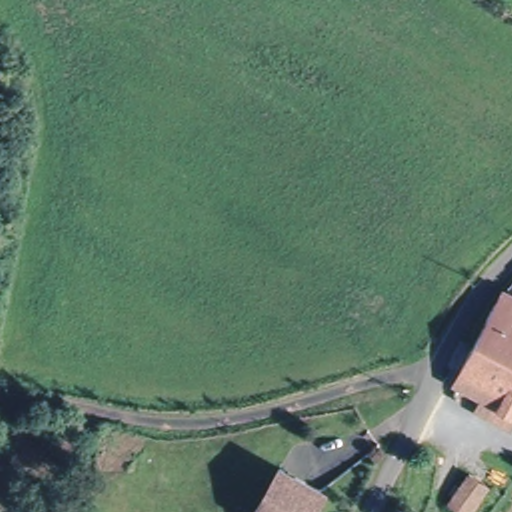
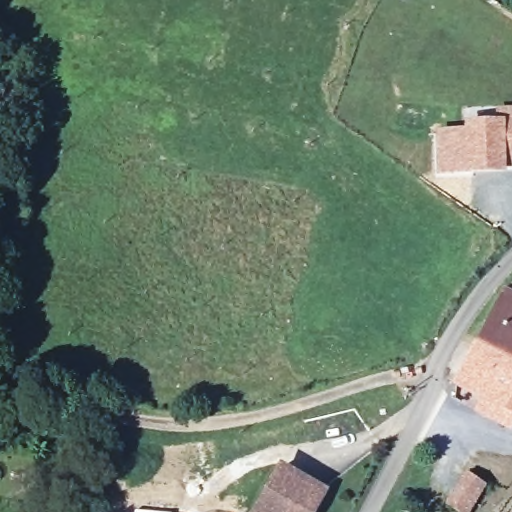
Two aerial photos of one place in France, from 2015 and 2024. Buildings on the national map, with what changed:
new [(434,131),(462,129),(462,122),(494,120),(494,110),(512,109),(512,167),(504,167),(504,173),(435,174),(434,131)]
unchanged [(498,302),(509,306),(512,300),(512,369),(474,350),(498,302)]
unchanged [(481,400),(455,387),(473,353),(474,350),(512,369),(512,420),(508,430),(474,412),(481,400)]
unchanged [(324,496),(314,512),(257,512),(279,474),(324,496)]
unchanged [(463,512),(453,506),(474,475),(491,485),(488,491),(474,512),(463,512)]

